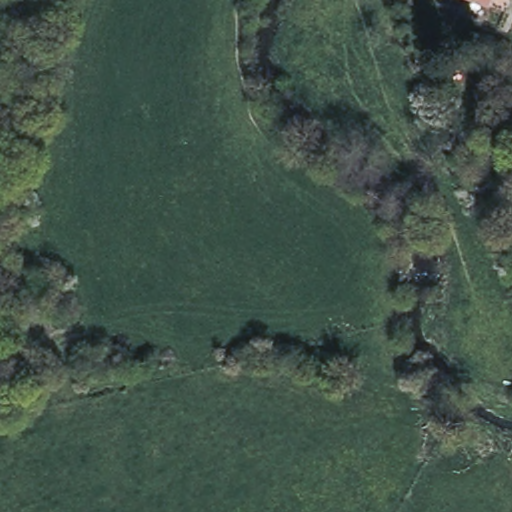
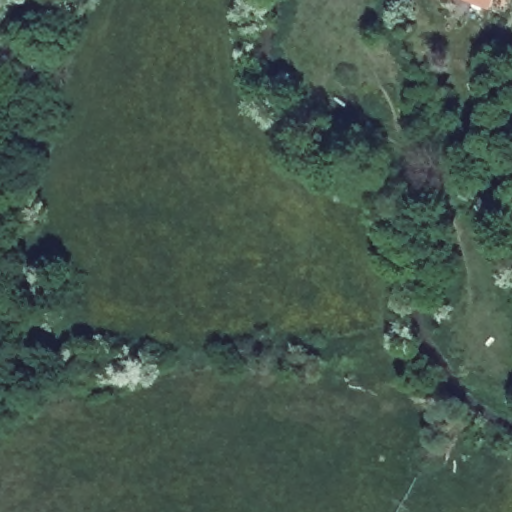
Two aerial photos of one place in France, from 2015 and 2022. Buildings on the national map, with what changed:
unchanged [(495,11),(466,0),(500,0),(495,11)]

